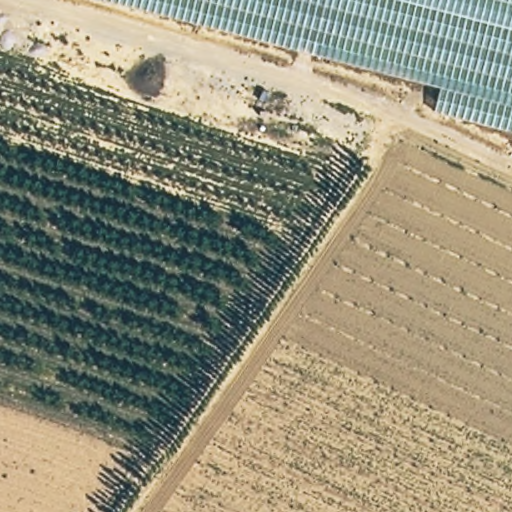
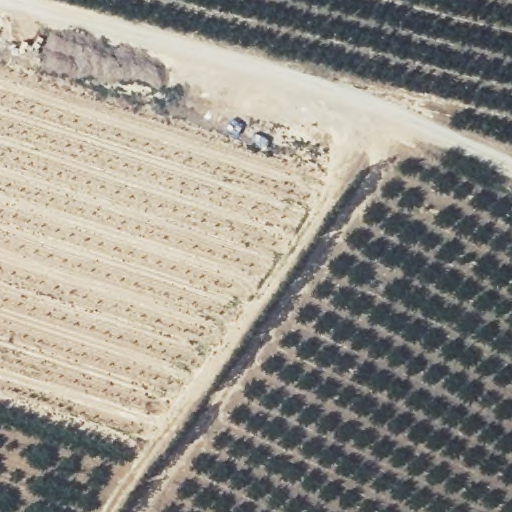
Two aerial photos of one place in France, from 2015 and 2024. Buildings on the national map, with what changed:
demolished [(441,86),(108,0),(512,0),(512,130),(434,113),(441,86)]

